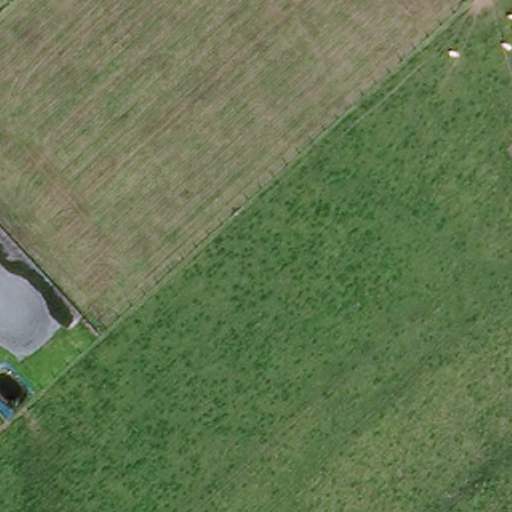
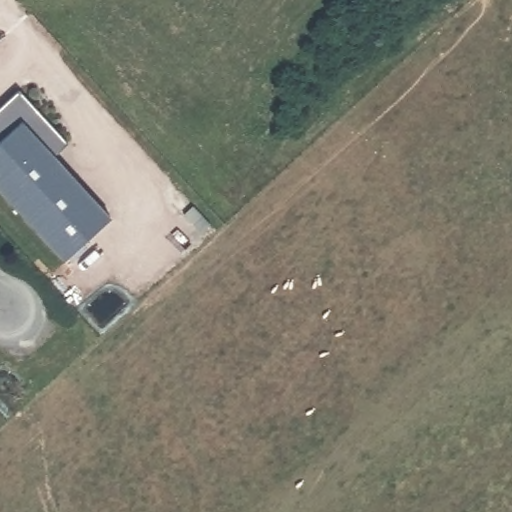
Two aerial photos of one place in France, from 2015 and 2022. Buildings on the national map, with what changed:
new [(17,87),(49,122),(66,141),(52,154),(109,216),(63,258),(0,190),(0,103),(17,87)]

